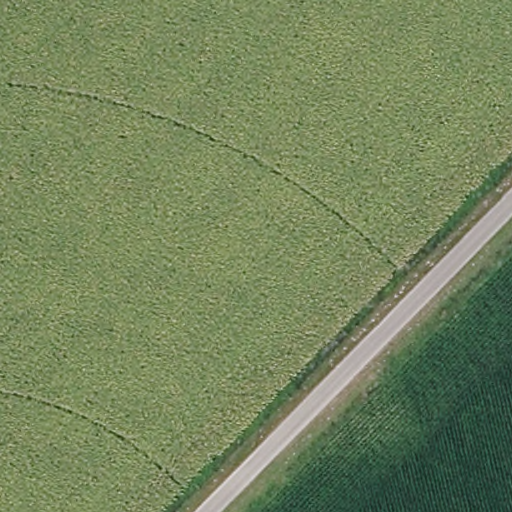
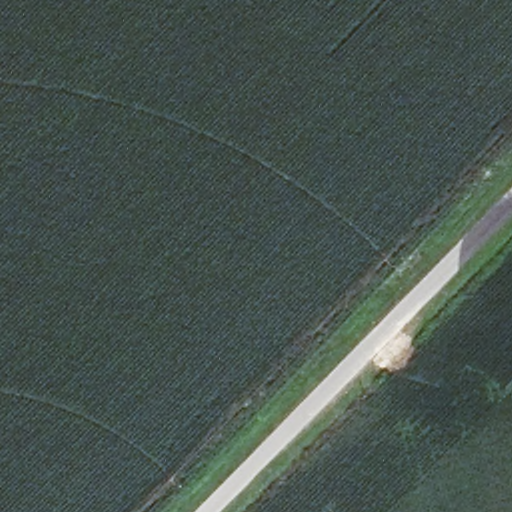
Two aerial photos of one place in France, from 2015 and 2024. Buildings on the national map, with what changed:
[]

